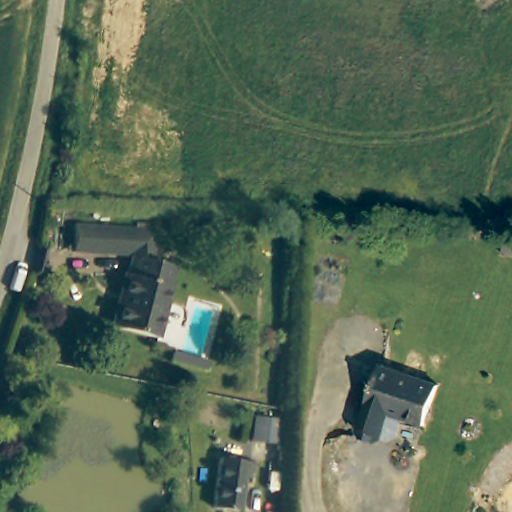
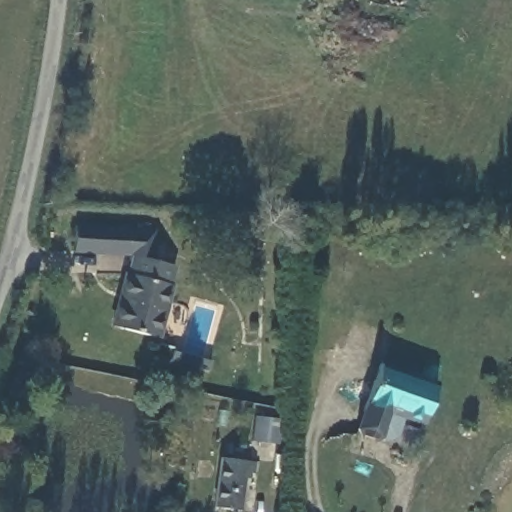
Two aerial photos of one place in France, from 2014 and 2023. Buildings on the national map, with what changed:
unchanged [(113,291),(116,271),(120,270),(123,254),(63,249),(65,223),(145,227),(143,258),(164,262),(158,280),(161,281),(148,335),(110,326),(105,325),(113,291)]
unchanged [(169,358),(208,366),(207,375),(167,367),(169,358)]
unchanged [(422,423),(400,416),(394,437),(387,440),(379,437),(373,440),(360,436),(357,430),(378,365),(435,383),(422,423)]
unchanged [(287,426),(284,451),(256,447),(259,422),(287,426)]
unchanged [(253,476),(242,475),(238,512),(231,512),(213,510),(219,460),(254,465),(253,476)]

